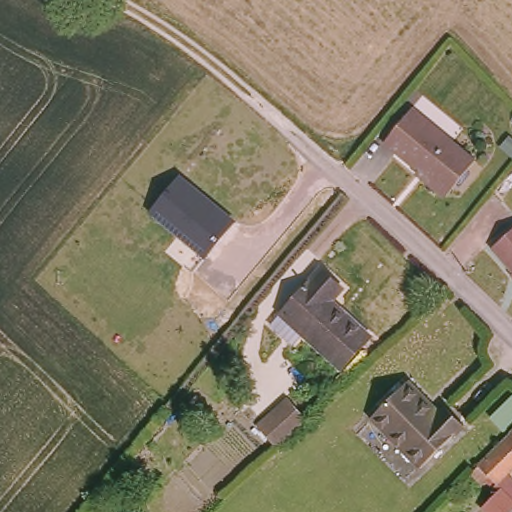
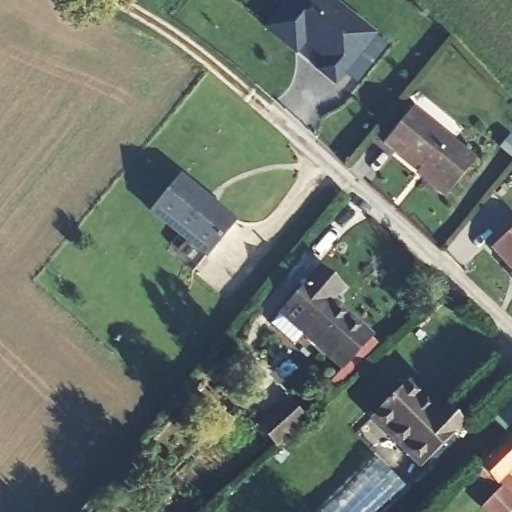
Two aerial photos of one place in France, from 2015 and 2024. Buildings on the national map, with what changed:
new [(302,40),(293,51),(263,27),(285,0),(330,0),(372,34),(332,84),(315,70),(325,59),(302,40)]
new [(340,74),(372,34),(387,47),(355,86),(340,74)]
unchanged [(415,106),(475,155),(449,189),(388,140),(415,106)]
unchanged [(240,221),(205,260),(152,213),(182,175),(240,221)]
unchanged [(512,235),(512,269),(495,249),(512,235)]
unchanged [(312,270),(335,289),(325,302),(363,334),(337,367),(275,314),(312,270)]
unchanged [(416,384),(445,414),(452,408),(467,425),(426,466),(380,418),(416,384)]
unchanged [(289,392),(310,417),(277,447),(257,424),(289,392)]
new [(480,509),(498,489),(487,479),(481,484),(469,473),(477,464),(509,433),(512,429),(512,470),(507,474),(512,478),(512,512),(484,512),(480,509)]
demolished [(512,437),(512,479),(510,481),(512,484),(512,503),(505,496),(479,469),(512,437)]
demolished [(505,496),(512,503),(512,512),(489,512),(505,496)]

